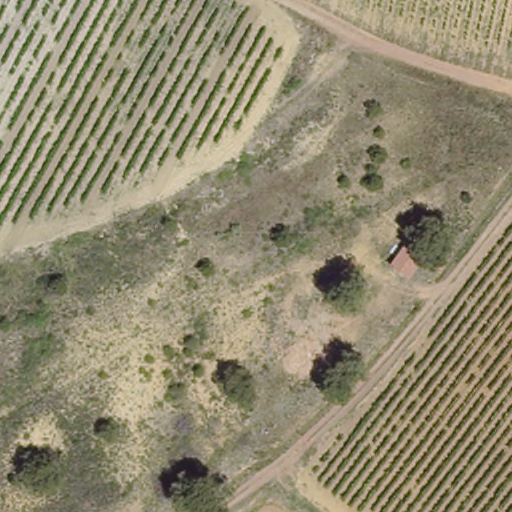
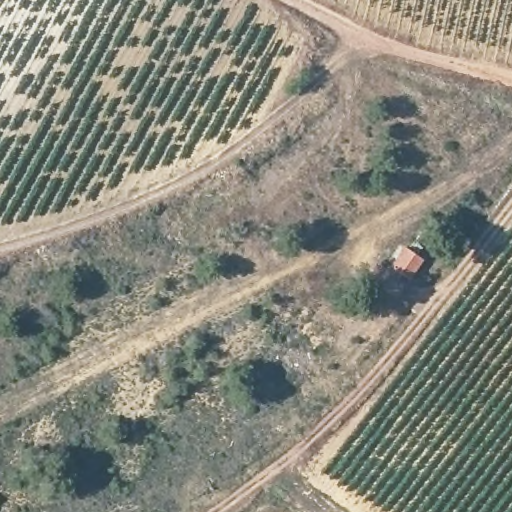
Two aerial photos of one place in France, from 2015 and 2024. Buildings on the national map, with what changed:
unchanged [(406,275),(392,263),(406,245),(419,255),(406,275)]

